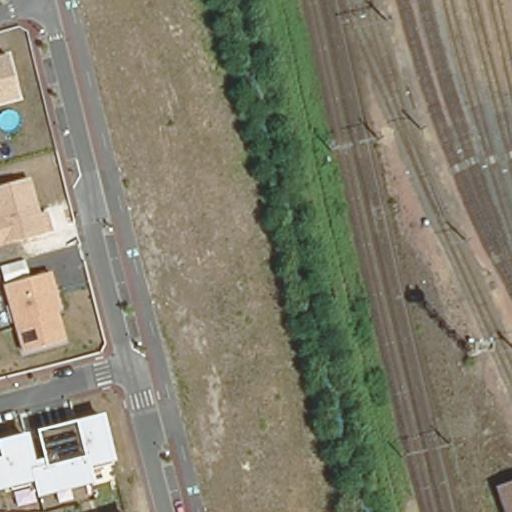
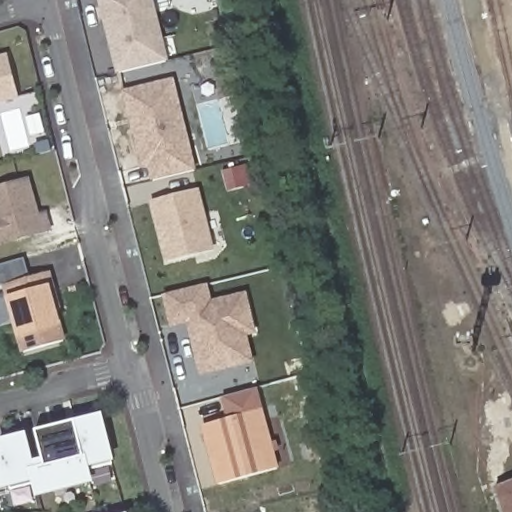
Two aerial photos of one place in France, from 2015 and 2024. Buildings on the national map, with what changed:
new [(163,60),(118,72),(100,0),(149,0),(163,60)]
unchanged [(21,100),(0,105),(0,56),(8,54),(21,100)]
new [(179,78),(201,167),(161,177),(157,161),(151,162),(141,123),(139,113),(133,90),(179,78)]
new [(250,186),(226,192),(221,171),(245,165),(250,186)]
unchanged [(0,246),(0,186),(31,176),(41,212),(49,211),(54,232),(0,246)]
new [(215,252),(164,265),(149,201),(199,189),(215,252)]
unchanged [(21,353),(3,285),(54,271),(65,310),(59,312),(69,341),(21,353)]
new [(250,360),(235,363),(200,372),(191,333),(189,324),(188,320),(171,323),(163,293),(203,283),(208,302),(243,294),(252,330),(243,332),(228,336),(243,332),(250,360)]
new [(200,426),(226,420),(222,399),(254,391),(272,472),(213,486),(200,426)]
unchanged [(92,467),(96,485),(35,500),(30,483),(0,491),(0,439),(104,412),(116,461),(92,467)]
unchanged [(512,512),(507,512),(498,489),(512,484),(512,512)]

